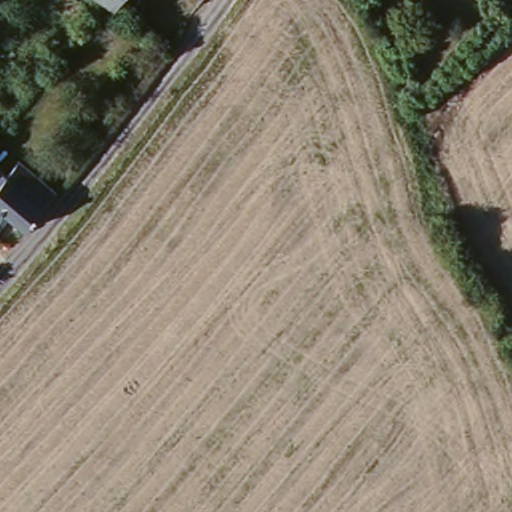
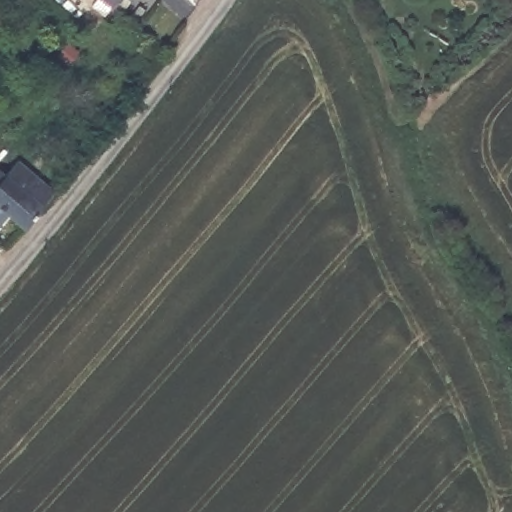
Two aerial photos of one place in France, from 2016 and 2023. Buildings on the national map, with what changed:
unchanged [(104,0),(107,0),(106,2),(104,0)]
unchanged [(0,178),(1,179),(13,164),(50,195),(38,210),(21,230),(0,212),(0,178)]

